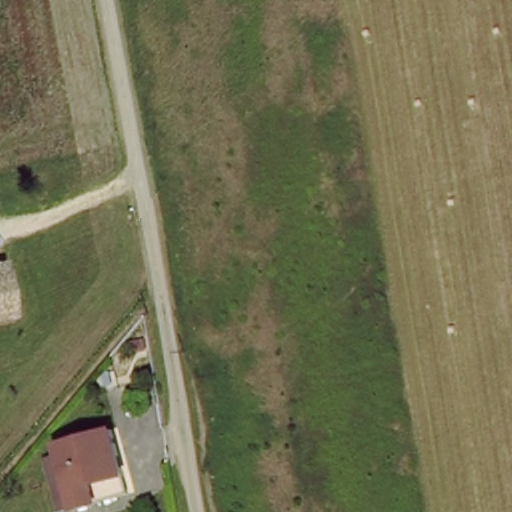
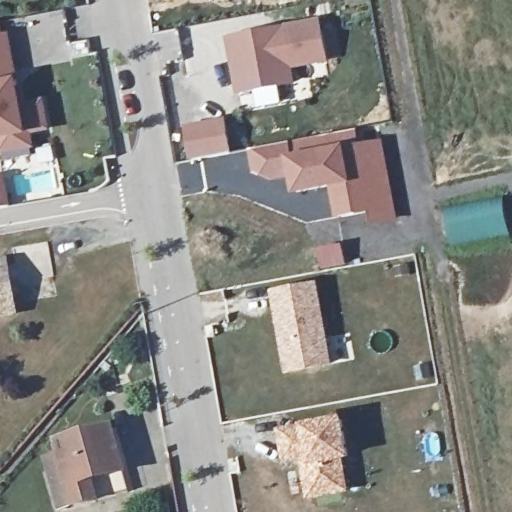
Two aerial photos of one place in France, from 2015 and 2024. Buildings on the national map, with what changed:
new [(2,36),(7,35),(14,92),(25,89),(27,104),(45,101),(50,135),(0,143),(0,26),(2,36)]
new [(325,65),(289,71),(292,87),(238,97),(232,63),(229,43),(238,41),(318,27),(325,65)]
new [(225,116),(231,152),(189,162),(181,123),(225,116)]
new [(329,188),(292,197),(288,179),(270,181),(252,175),(248,149),(356,129),(359,142),(382,139),(398,220),(370,226),(367,214),(355,215),(335,218),(329,188)]
new [(502,195),(509,235),(449,248),(440,205),(502,195)]
new [(341,240),(346,266),(319,270),(314,245),(341,240)]
unchanged [(8,268),(11,283),(18,319),(0,323),(0,270),(8,268)]
new [(316,287),(328,372),(281,378),(270,293),(316,287)]
unchanged [(43,456),(57,452),(54,441),(114,423),(132,495),(73,512),(72,510),(63,512),(58,512),(43,456)]
new [(285,464),(280,436),(340,425),(347,461),(340,462),(346,495),(309,502),(303,468),(310,467),(309,460),(285,464)]
new [(302,461),(309,460),(310,467),(303,468),(302,461)]

